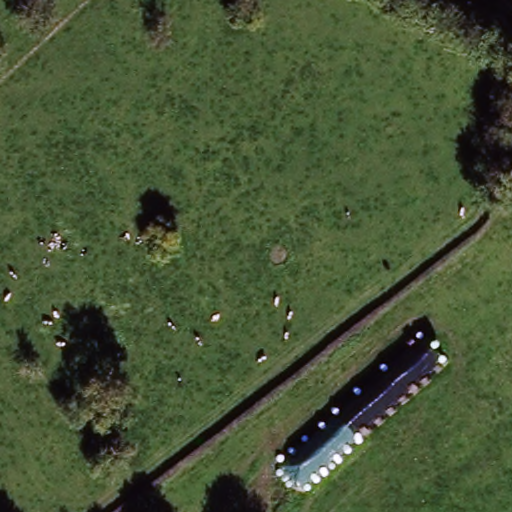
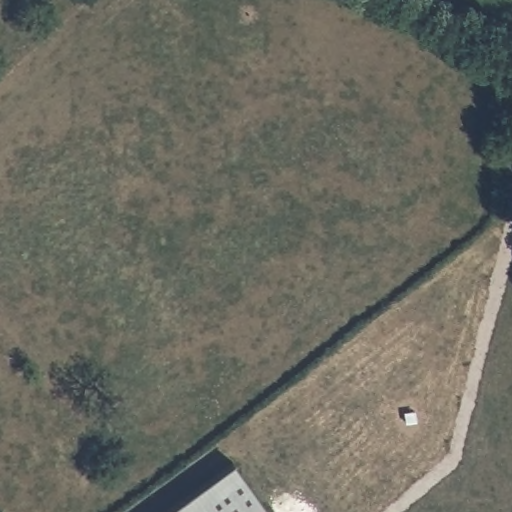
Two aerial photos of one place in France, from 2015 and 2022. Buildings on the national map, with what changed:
new [(271,512),(166,512),(234,463),(271,512)]

